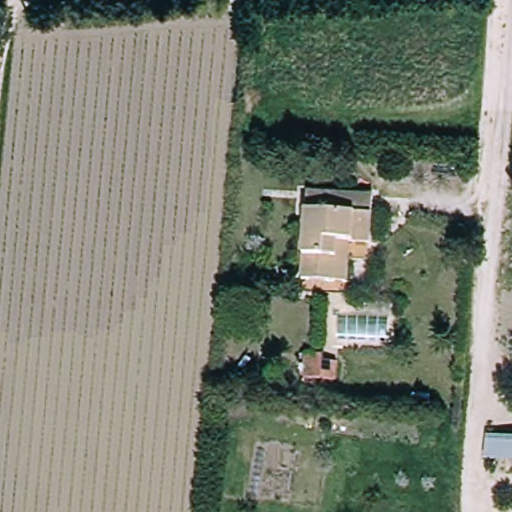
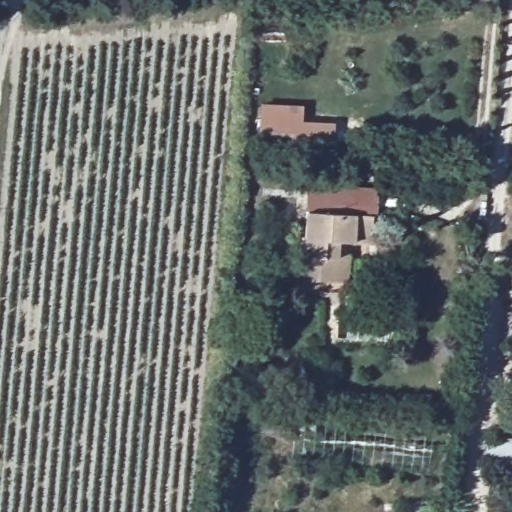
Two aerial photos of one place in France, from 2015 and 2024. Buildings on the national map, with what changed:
new [(334,124),(334,144),(259,144),(261,104),(303,105),(303,122),(334,124)]
unchanged [(334,282),(302,280),(307,193),(374,196),(371,244),(351,242),(348,283),(334,282)]
unchanged [(336,379),(303,378),(305,356),(322,355),(322,363),(336,363),(336,379)]
unchanged [(492,437),(512,438),(512,462),(491,460),(492,437)]

